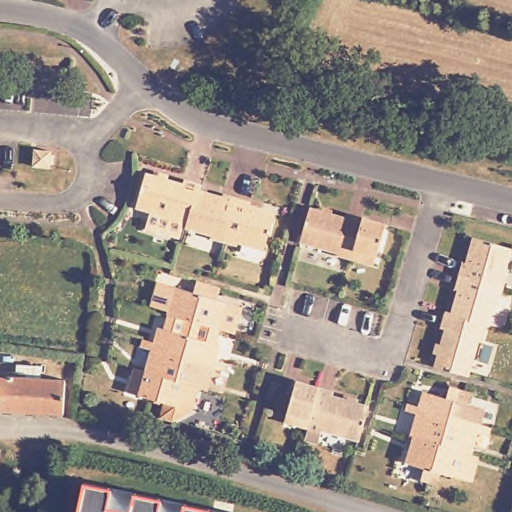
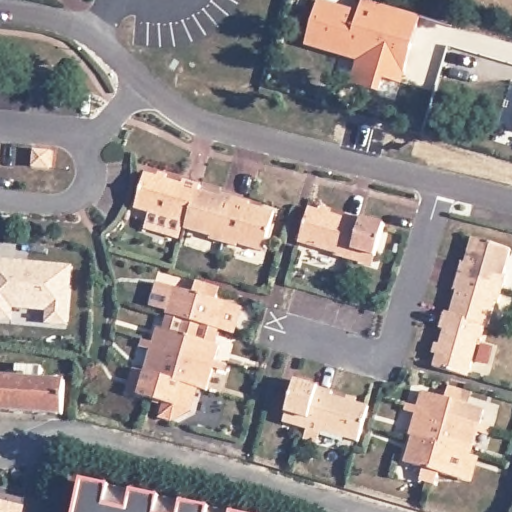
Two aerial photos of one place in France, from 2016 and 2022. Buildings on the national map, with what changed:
new [(318,8),(359,19),(363,4),(418,19),(409,53),(402,51),(399,64),(406,66),(401,86),(382,81),(379,95),(353,88),(360,64),(307,50),(318,8)]
unchanged [(48,171),(31,170),(32,152),(49,154),(48,171)]
unchanged [(143,227),(148,210),(132,205),(143,171),(180,182),(182,177),(199,182),(197,187),(220,194),(221,191),(248,199),(247,202),(272,210),(260,249),(236,242),(235,244),(208,236),(209,234),(183,226),(184,223),(181,223),(177,237),(143,227)]
unchanged [(355,265),(333,259),(334,256),(295,245),(305,209),(345,221),(346,217),(361,221),(361,220),(384,226),(375,259),(372,269),(355,265)]
unchanged [(509,252),(501,277),(504,278),(496,305),(493,305),(485,330),(483,329),(479,343),(477,343),(466,380),(433,370),(444,333),(439,332),(444,314),(449,316),(456,293),(453,292),(461,266),(464,266),(472,241),(509,252)]
new [(73,263),(68,326),(46,323),(47,310),(14,308),(13,320),(0,319),(0,258),(73,263)]
unchanged [(143,375),(150,352),(139,349),(141,341),(151,345),(156,330),(159,331),(164,317),(165,317),(166,314),(165,314),(151,310),(149,309),(148,309),(156,285),(156,284),(173,290),(191,295),(195,283),(210,288),(218,290),(214,302),(224,305),(239,310),(231,336),(216,332),(212,346),(217,348),(213,362),(224,366),(222,373),(211,370),(204,393),(181,385),(174,409),(159,404),(158,407),(152,405),(153,403),(136,398),(125,394),(130,379),(132,371),(143,375)]
unchanged [(16,367),(36,368),(35,380),(64,381),(63,415),(0,413),(0,373),(16,373),(16,367)]
unchanged [(285,415),(292,389),(290,388),(292,382),(330,395),(329,399),(367,409),(357,444),(319,433),(318,435),(297,430),(282,426),(285,415)]
unchanged [(447,389),(463,394),(471,397),(468,409),(481,413),(477,427),(489,431),(486,439),(475,435),(468,458),(462,456),(455,481),(437,476),(433,488),(418,484),(422,471),(403,466),(411,441),(408,440),(415,417),(404,414),(406,406),(417,410),(421,395),(443,401),(447,389)]
unchanged [(73,512),(79,480),(225,512),(73,512)]
new [(24,499),(25,496),(42,500),(40,512),(0,512),(0,493),(24,499)]

